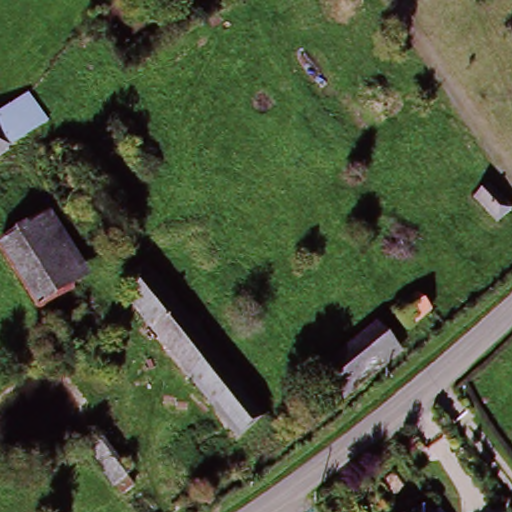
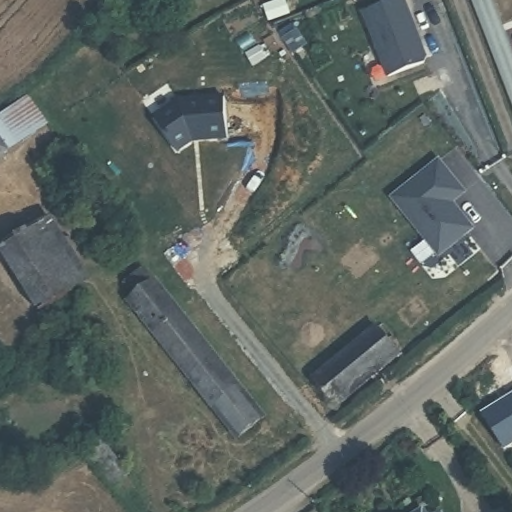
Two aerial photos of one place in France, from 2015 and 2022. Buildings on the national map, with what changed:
new [(402,0),(426,57),(387,74),(361,9),(382,0),(402,0)]
new [(228,140),(194,142),(179,155),(154,118),(178,99),(224,95),(228,140)]
unchanged [(0,161),(0,119),(30,99),(50,127),(0,161)]
new [(469,191),(456,203),(477,228),(440,257),(390,199),(439,159),(469,191)]
demolished [(491,190),(511,214),(496,226),(476,201),(491,190)]
unchanged [(84,284),(49,306),(8,241),(42,219),(84,284)]
unchanged [(147,274),(264,420),(235,445),(126,308),(138,299),(129,288),(147,274)]
demolished [(423,293),(435,308),(410,328),(398,313),(423,293)]
unchanged [(84,310),(114,343),(92,363),(63,330),(84,310)]
unchanged [(390,351),(329,402),(310,379),(372,328),(390,351)]
unchanged [(133,485),(119,495),(90,453),(104,443),(133,485)]
unchanged [(420,511),(420,512),(418,512),(420,511)]

